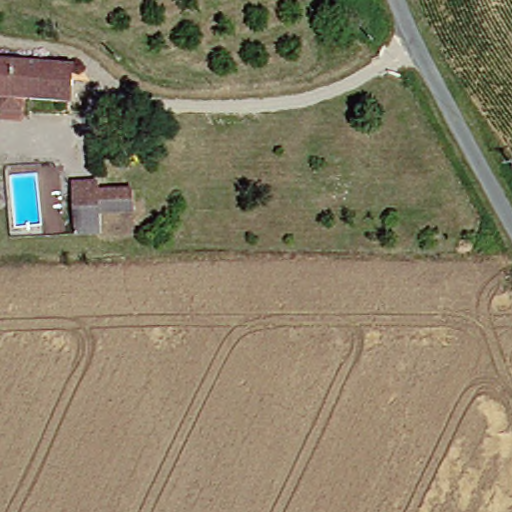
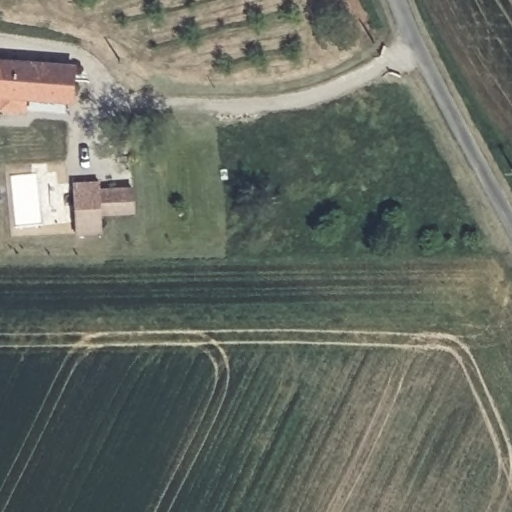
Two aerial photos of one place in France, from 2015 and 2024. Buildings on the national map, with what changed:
unchanged [(77,99),(32,96),(32,110),(10,110),(9,96),(0,95),(0,56),(79,61),(77,99)]
unchanged [(84,235),(79,182),(109,179),(110,191),(142,190),(144,214),(105,220),(107,234),(84,235)]

